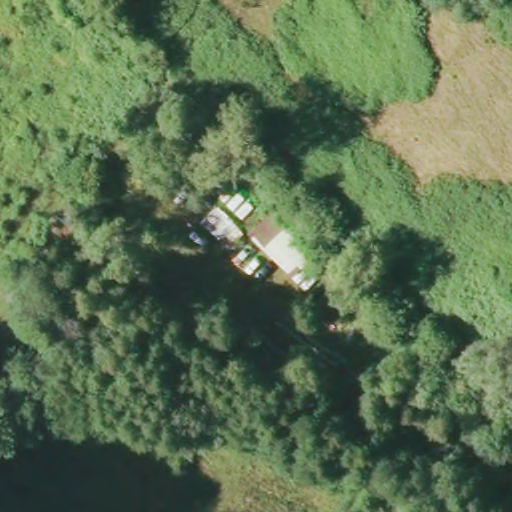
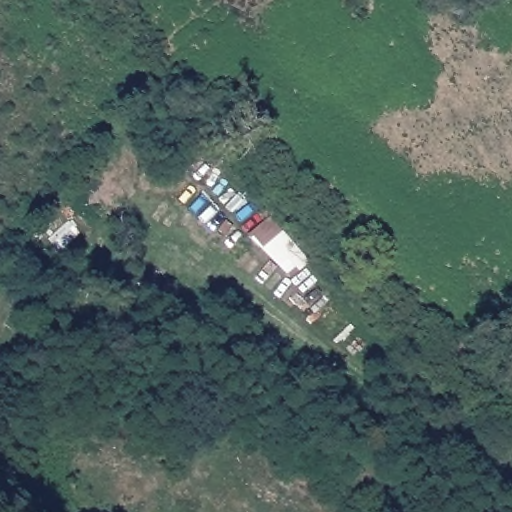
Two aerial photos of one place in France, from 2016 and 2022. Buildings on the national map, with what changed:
unchanged [(288,276),(248,240),(253,232),(264,245),(286,229),(313,258),(288,276)]

